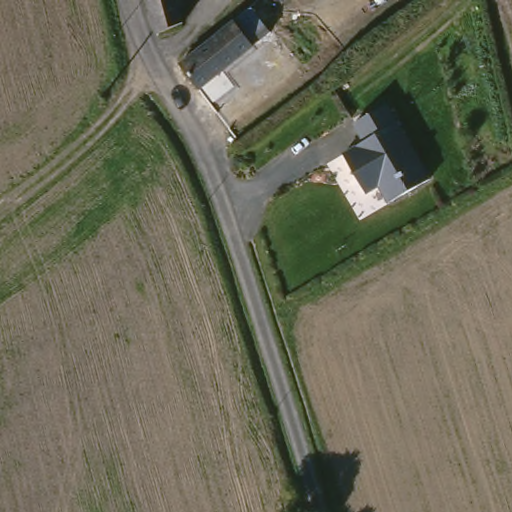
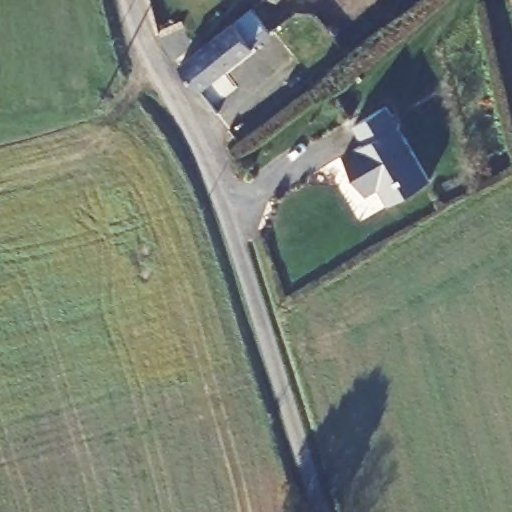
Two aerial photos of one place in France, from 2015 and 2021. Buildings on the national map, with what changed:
unchanged [(160,35),(151,0),(182,0),(188,25),(160,35)]
unchanged [(238,25),(255,10),(273,37),(257,50),(205,91),(185,66),(204,51),(238,25)]
unchanged [(435,178),(395,201),(385,185),(372,192),(350,153),(371,140),(363,127),(360,122),(392,104),(394,106),(435,178)]

